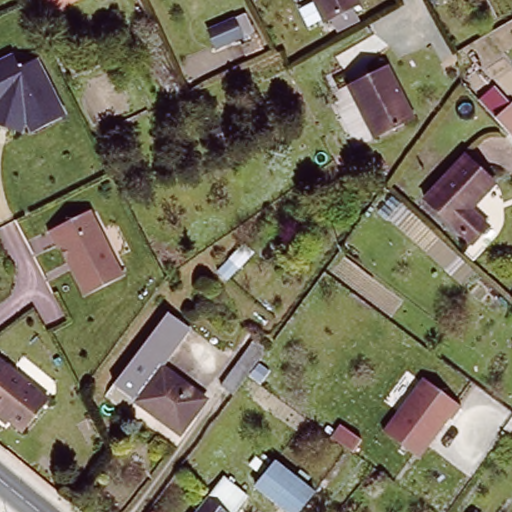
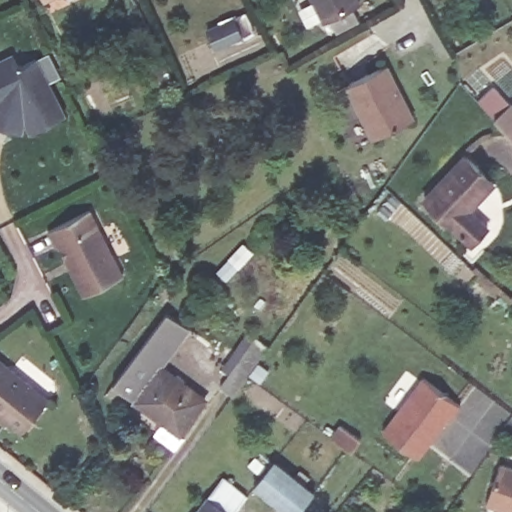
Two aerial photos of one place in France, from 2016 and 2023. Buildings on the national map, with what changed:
unchanged [(42,0),(50,0),(43,3),(42,0)]
unchanged [(320,20),(310,0),(355,0),(355,1),(320,20)]
unchanged [(244,32),(224,46),(211,26),(231,12),(244,32)]
unchanged [(33,42),(65,117),(30,132),(25,123),(22,132),(0,125),(0,56),(33,42)]
unchanged [(362,114),(350,90),(385,71),(412,122),(381,139),(377,141),(362,114)]
unchanged [(512,105),(512,134),(495,115),(509,102),(512,105)]
unchanged [(497,182),(474,207),(492,222),(477,239),(427,196),(465,153),(497,182)]
unchanged [(91,207),(125,275),(82,295),(47,228),(91,207)]
unchanged [(135,402),(114,385),(168,311),(191,328),(162,367),(135,402)]
unchanged [(256,335),(269,345),(235,392),(222,383),(256,335)]
unchanged [(50,404),(25,435),(0,414),(0,362),(50,404)]
unchanged [(180,436),(141,407),(135,402),(162,367),(207,400),(180,436)]
unchanged [(422,373),(461,403),(451,417),(450,417),(418,457),(381,429),(422,373)]
new [(512,461),(512,507),(490,499),(504,458),(512,461)]
unchanged [(277,463),(314,492),(298,512),(291,512),(259,487),(277,463)]
unchanged [(226,478),(239,487),(220,510),(223,512),(197,512),(226,478)]

